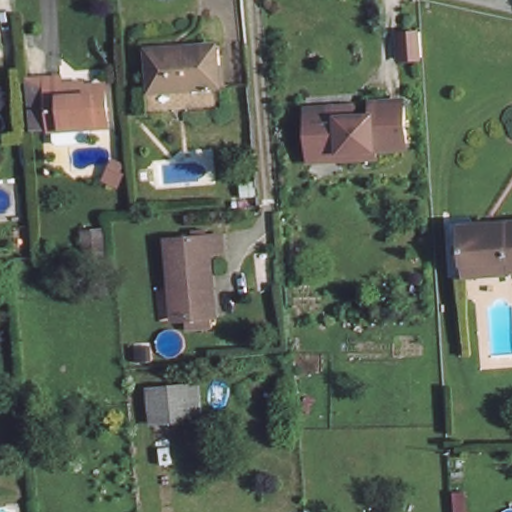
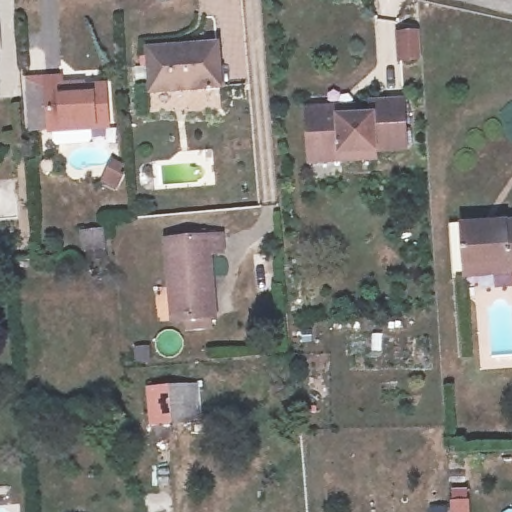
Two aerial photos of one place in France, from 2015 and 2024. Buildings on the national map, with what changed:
unchanged [(0,48),(0,17),(8,46),(0,48)]
unchanged [(219,88),(153,92),(150,59),(149,49),(183,47),(215,45),(219,88)]
unchanged [(103,137),(43,140),(36,86),(55,85),(55,90),(78,89),(78,95),(98,96),(103,137)]
unchanged [(376,117),(376,103),(411,104),(411,151),(381,151),(380,160),(375,160),(372,118),(376,117)]
unchanged [(314,153),(313,115),(313,109),(359,109),(361,119),(372,118),(375,160),(346,161),(315,162),(314,153)]
unchanged [(509,265),(508,276),(467,276),(464,222),(512,219),(512,265),(509,265)]
unchanged [(171,302),(166,235),(223,230),(225,247),(213,249),(220,315),(193,317),(172,318),(171,302)]
unchanged [(84,251),(85,232),(102,233),(103,251),(84,251)]
unchanged [(203,384),(203,411),(205,430),(148,431),(146,389),(203,384)]

